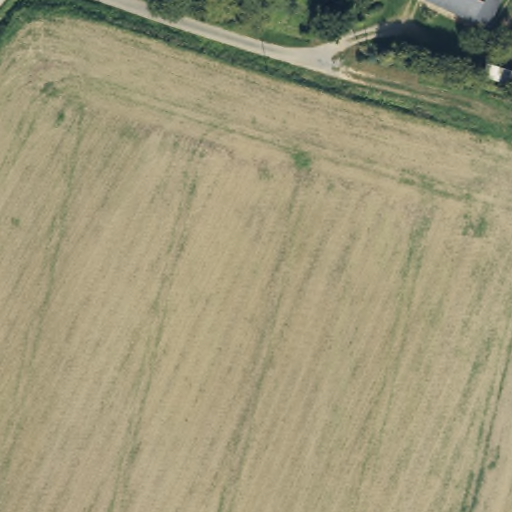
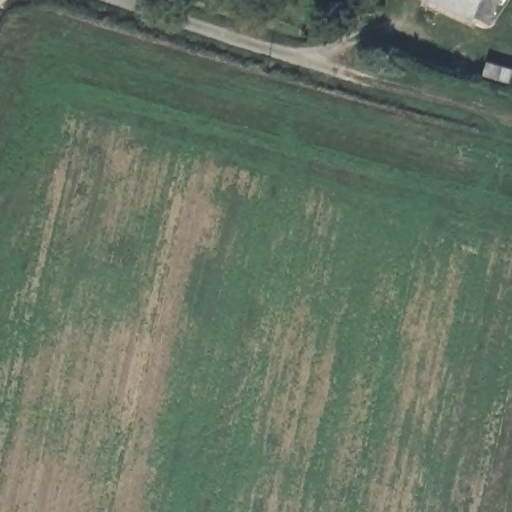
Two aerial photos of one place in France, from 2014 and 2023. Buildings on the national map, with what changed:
unchanged [(476,19),(438,0),(502,0),(491,23),(477,16),(476,19)]

